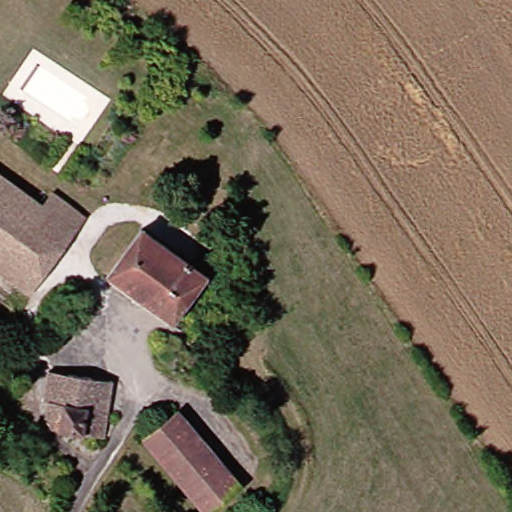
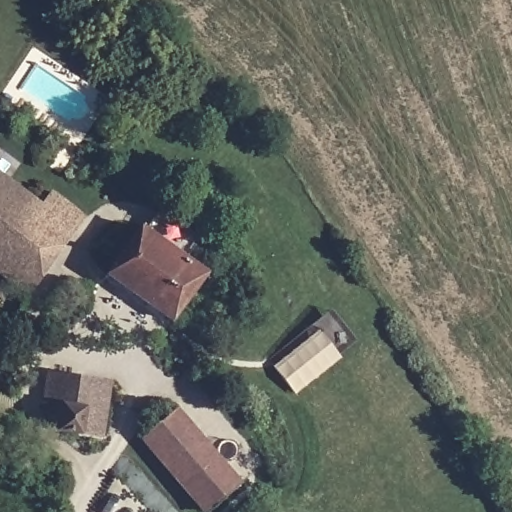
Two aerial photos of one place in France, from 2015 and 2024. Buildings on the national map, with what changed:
unchanged [(60,216),(15,278),(0,267),(0,169),(52,204),(60,192),(93,217),(83,232),(60,216)]
unchanged [(39,295),(15,278),(60,216),(83,232),(39,295)]
unchanged [(210,282),(195,302),(183,322),(118,279),(149,232),(213,278),(210,282)]
new [(275,366),(318,332),(341,360),(297,394),(275,366)]
unchanged [(111,440),(60,432),(55,424),(55,419),(54,419),(57,404),(52,403),(57,373),(120,383),(111,440)]
unchanged [(185,414),(245,483),(212,511),(153,441),(185,414)]

